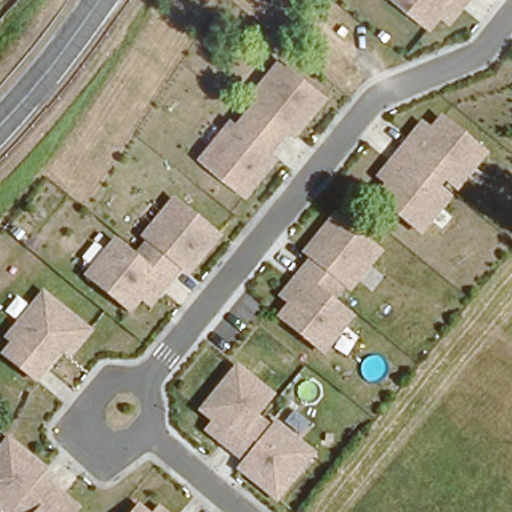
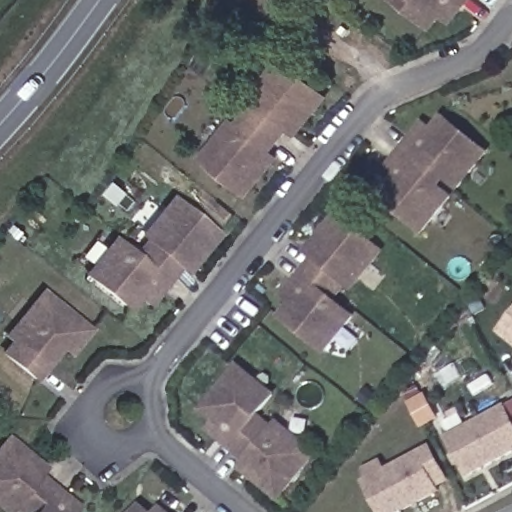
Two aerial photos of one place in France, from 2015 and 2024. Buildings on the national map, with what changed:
unchanged [(435,9),(423,24),(392,0),(457,0),(454,4),(445,16),(435,9)]
unchanged [(286,125),(277,137),(246,112),(256,100),(250,96),(280,59),(324,95),(305,118),(294,131),(286,125)]
unchanged [(263,168),(245,191),(201,156),(231,119),(237,124),(246,112),(277,137),(267,148),(275,155),(263,168)]
unchanged [(424,126),(433,134),(443,122),(485,155),(456,189),(436,173),(432,177),(402,153),(412,141),(424,126)]
unchanged [(448,198),(421,233),(380,200),(390,187),(380,180),(392,166),(402,153),(432,177),(428,182),(448,198)]
unchanged [(176,262),(167,274),(136,249),(145,237),(140,233),(170,196),(214,231),(194,255),(184,268),(176,262)]
unchanged [(382,252),(351,289),(346,284),(336,296),(306,271),(315,260),(307,253),(318,240),(337,216),(382,252)]
unchanged [(137,291),(125,306),(82,271),(111,236),(132,254),(136,249),(167,274),(156,286),(146,299),(137,291)]
unchanged [(294,304),(285,296),(295,284),(306,271),(336,296),(332,301),(353,318),(325,353),(282,318),(294,304)]
unchanged [(90,331),(70,355),(57,344),(51,351),(56,355),(36,380),(4,355),(14,343),(7,338),(19,325),(21,327),(35,310),(32,308),(44,294),(90,331)]
new [(497,329),(512,311),(512,341),(497,329)]
unchanged [(219,423),(205,411),(240,368),(275,396),(257,418),(262,422),(237,452),(224,442),(212,432),(219,423)]
new [(505,404),(512,417),(512,453),(466,477),(445,436),(505,404)]
unchanged [(249,462),(237,452),(262,422),(273,431),(278,425),(315,455),(278,499),(255,480),(242,469),(249,462)]
unchanged [(4,512),(0,509),(0,448),(5,441),(29,459),(42,470),(37,478),(49,487),(29,512),(16,512),(12,509),(10,512),(4,512)]
new [(448,479),(436,486),(438,490),(397,512),(379,512),(364,482),(418,453),(431,445),(448,479)]
new [(365,470),(382,461),(387,469),(369,479),(365,470)]
unchanged [(62,496),(74,506),(70,512),(29,512),(49,487),(62,496)]
unchanged [(142,512),(137,512),(139,509),(142,512)]
unchanged [(162,512),(160,512),(161,511),(162,512)]

